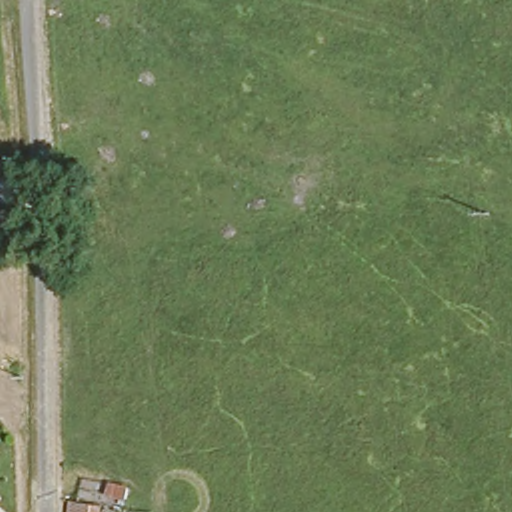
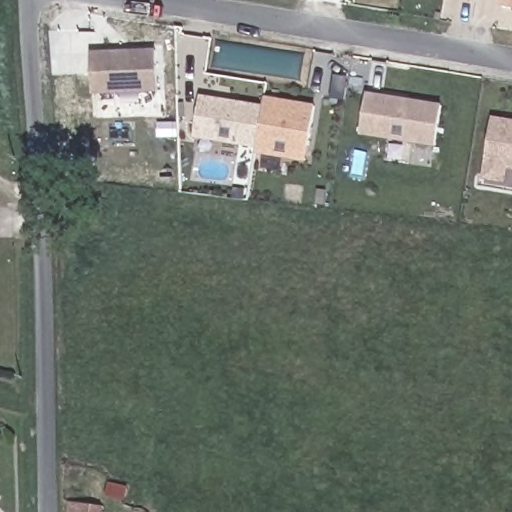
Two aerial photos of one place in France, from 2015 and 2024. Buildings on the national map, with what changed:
new [(476,2),(467,0),(476,0),(476,2)]
new [(498,0),(512,0),(512,9),(496,7),(498,0)]
new [(160,90),(91,92),(90,51),(159,50),(160,90)]
new [(438,145),(360,134),(366,92),(443,105),(438,145)]
new [(307,161),(255,152),(256,149),(194,139),(200,95),(262,105),(265,96),(317,105),(307,161)]
new [(505,183),(481,179),(491,114),(512,117),(512,170),(508,170),(505,183)]
unchanged [(99,512),(68,512),(69,502),(100,506),(99,512)]

